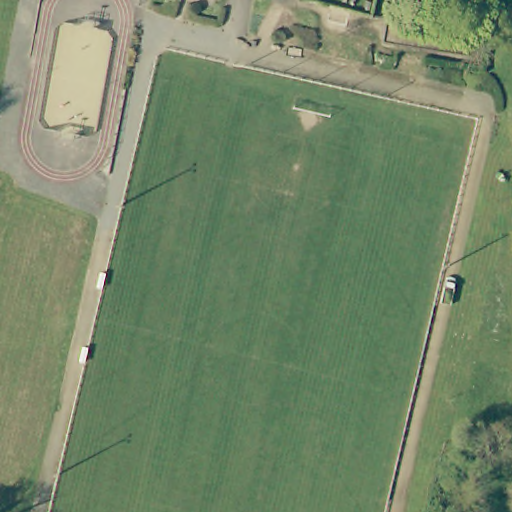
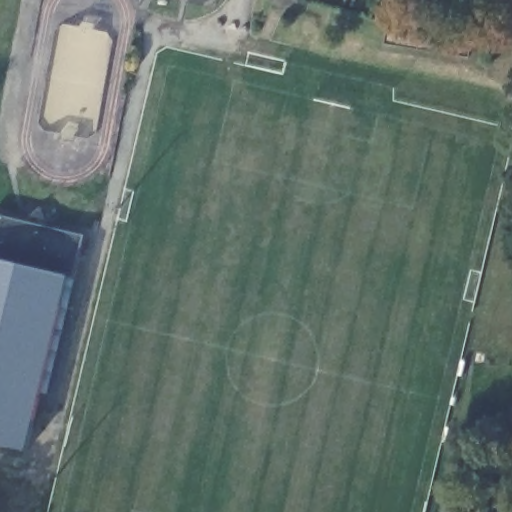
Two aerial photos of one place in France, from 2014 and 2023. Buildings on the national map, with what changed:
new [(0,446),(0,216),(84,236),(72,286),(67,283),(27,452),(0,446)]

